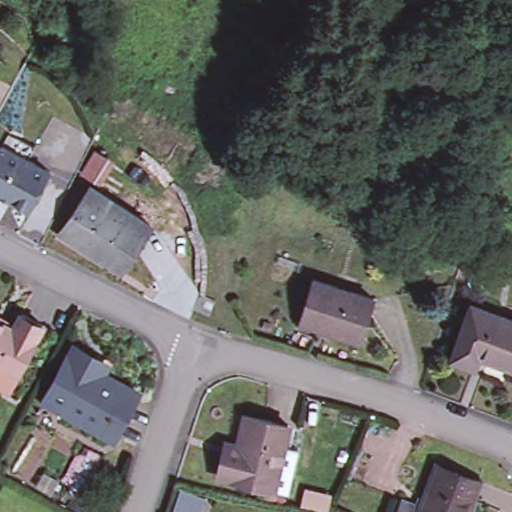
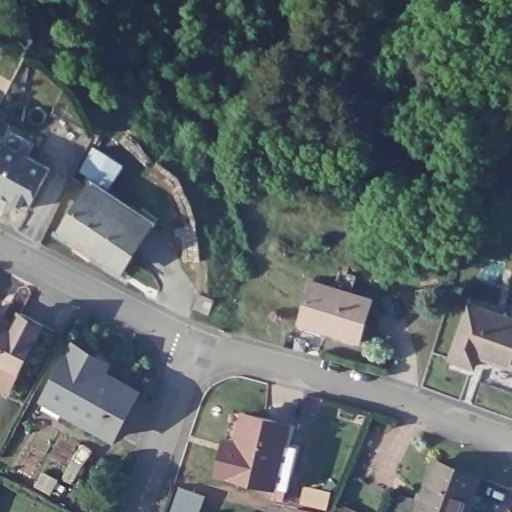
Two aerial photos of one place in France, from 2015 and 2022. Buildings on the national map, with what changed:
unchanged [(2,141),(8,129),(35,142),(28,155),(50,167),(30,207),(0,192),(0,144),(2,141)]
unchanged [(61,230),(87,190),(90,184),(151,224),(147,230),(121,270),(61,230)]
unchanged [(312,280),(373,298),(360,341),(298,322),(312,280)]
unchanged [(192,308),(198,293),(214,300),(207,315),(192,308)]
unchanged [(512,318),(512,365),(478,353),(473,365),(452,356),(470,303),(512,318)]
unchanged [(11,328),(20,312),(41,325),(16,372),(7,390),(0,386),(0,322),(11,328)]
unchanged [(73,344),(108,362),(104,371),(138,390),(113,436),(43,400),(73,344)]
unchanged [(288,495),(273,491),(217,478),(225,444),(237,446),(244,417),(288,427),(283,447),(298,450),(288,495)]
unchanged [(402,501),(420,507),(436,465),(478,480),(467,512),(398,512),(402,501)]

